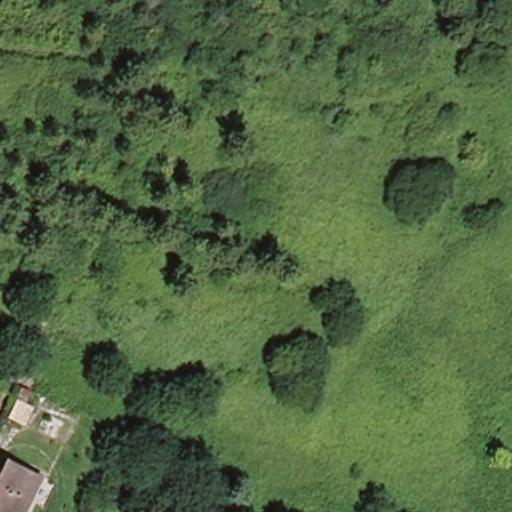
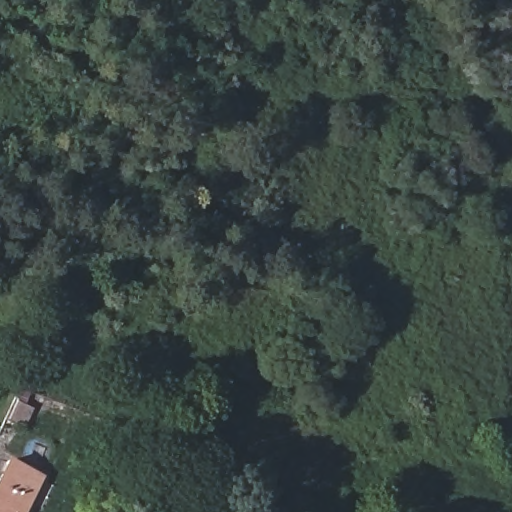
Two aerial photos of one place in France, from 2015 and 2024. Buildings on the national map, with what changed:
unchanged [(23,512),(0,512),(0,473),(6,461),(40,477),(23,512)]

